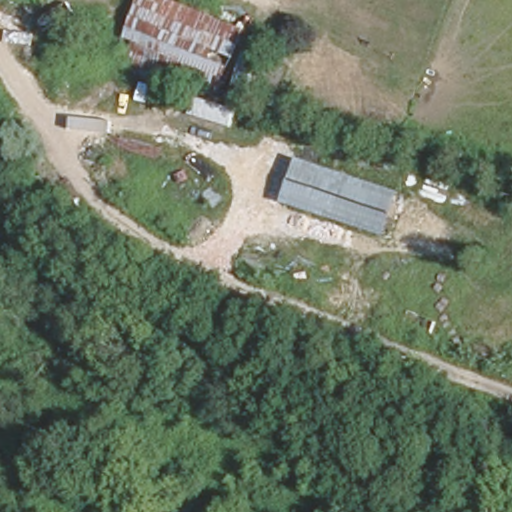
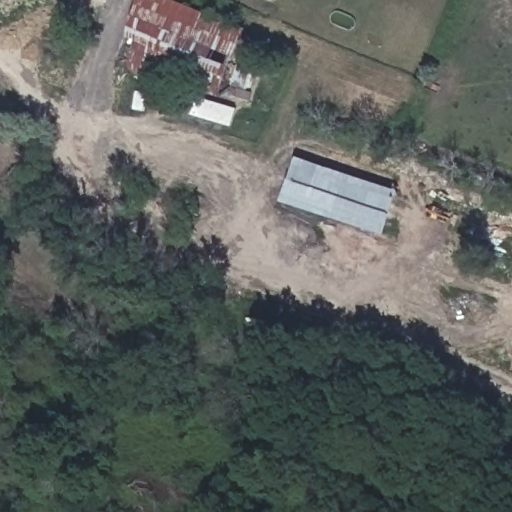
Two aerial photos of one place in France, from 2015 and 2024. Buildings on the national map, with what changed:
unchanged [(251,24),(219,91),(111,57),(134,0),(183,0),(251,24)]
unchanged [(399,191),(385,236),(282,201),(297,157),(399,191)]

